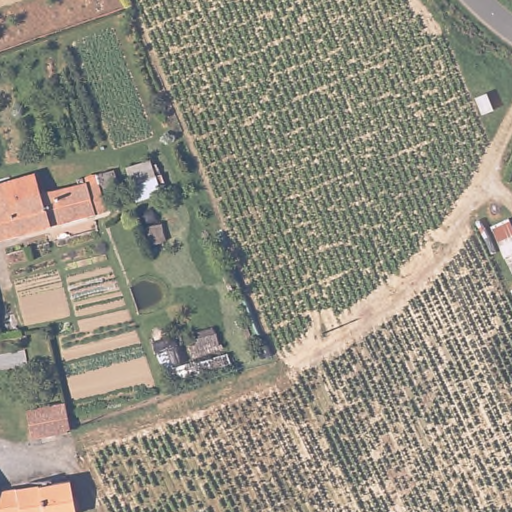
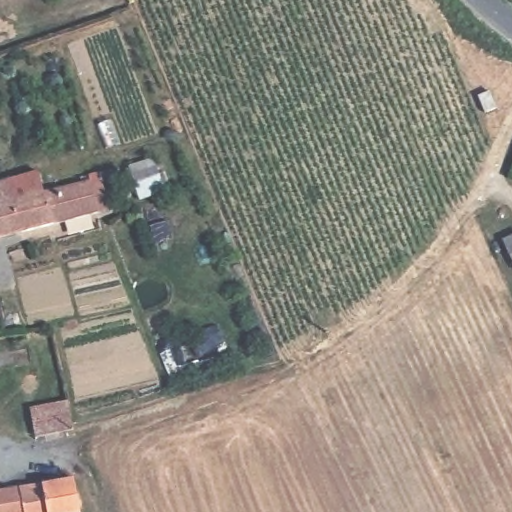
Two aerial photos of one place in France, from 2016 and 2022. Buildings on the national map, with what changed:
unchanged [(124,165),(153,155),(158,172),(164,170),(168,185),(136,199),(124,165)]
unchanged [(39,169),(40,175),(44,187),(90,175),(92,184),(104,181),(107,194),(110,205),(97,209),(21,230),(0,236),(0,179),(6,177),(39,169)]
unchanged [(505,205),(511,211),(512,214),(512,286),(478,214),(505,205)]
unchanged [(72,425),(72,429),(65,428),(30,433),(29,417),(41,415),(40,403),(69,399),(71,422),(72,425)]
unchanged [(77,512),(0,512),(0,482),(27,478),(28,480),(75,476),(80,511),(77,512)]

